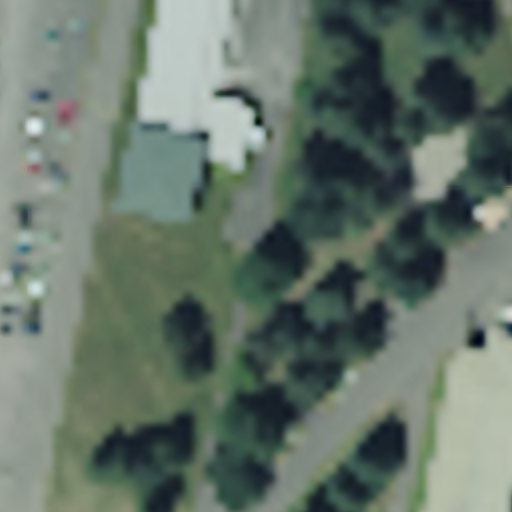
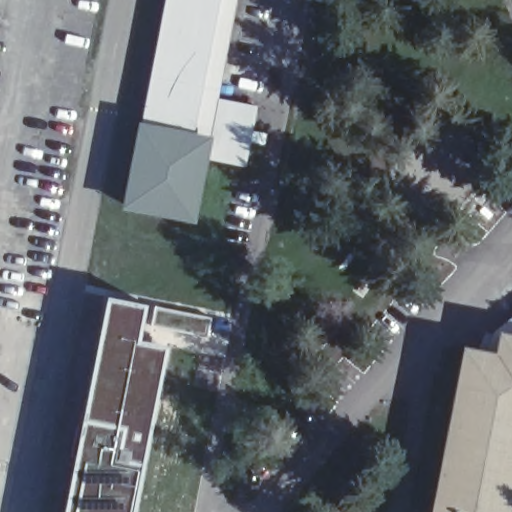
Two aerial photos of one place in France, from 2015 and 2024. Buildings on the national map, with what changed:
unchanged [(255,99),(243,163),(210,154),(195,214),(119,196),(159,0),(236,0),(218,92),(255,99)]
new [(145,308),(135,344),(165,350),(134,512),(64,512),(105,302),(145,308)]
unchanged [(464,337),(500,314),(512,306),(512,512),(428,512),(464,337)]

